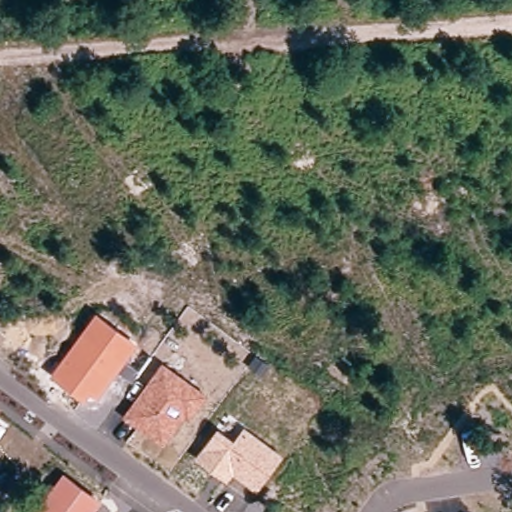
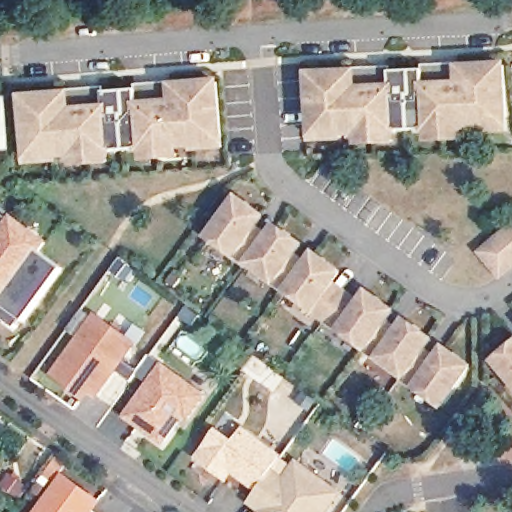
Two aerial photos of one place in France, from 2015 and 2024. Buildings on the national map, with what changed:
new [(359,144),(358,134),(339,135),(339,139),(312,141),(311,130),(308,75),(353,73),(352,69),(376,68),(390,66),(391,72),(423,70),(423,64),(460,63),(460,67),(505,64),(508,119),(508,130),(481,131),(481,127),(461,128),(462,138),(430,140),(429,129),(391,132),(392,142),(359,144)]
new [(70,169),(70,159),(50,160),(51,165),(23,167),(23,156),(17,102),(62,98),(61,94),(85,91),(99,90),(100,95),(132,93),(132,87),(169,84),(170,88),(214,84),(219,139),(220,149),(193,152),(192,147),(173,149),(174,159),(141,162),(140,152),(102,155),(103,165),(70,169)]
new [(4,154),(0,154),(0,107),(4,154)]
new [(472,371),(443,411),(404,382),(405,381),(248,268),(247,269),(207,241),(236,202),(261,219),(255,229),(268,238),(275,229),(300,248),(294,257),(307,267),(314,258),(340,275),(333,285),(362,305),(368,297),(394,314),(387,324),(401,334),(407,324),(433,343),(426,352),(440,362),(447,353),(472,371)]
new [(0,327),(0,230),(2,232),(4,229),(18,239),(35,252),(29,260),(56,279),(21,329),(18,328),(13,337),(0,327)]
new [(512,269),(504,277),(484,254),(512,230),(512,269)]
unchanged [(140,344),(100,402),(91,397),(86,404),(50,376),(96,313),(140,344)]
new [(512,353),(512,380),(499,364),(512,353)]
unchanged [(208,396),(189,422),(185,418),(164,446),(123,418),(162,363),(208,396)]
unchanged [(1,410),(0,411),(0,410),(1,410)]
unchanged [(284,456),(257,492),(232,475),(226,483),(195,459),(218,428),(235,441),(244,427),(284,456)]
new [(284,477),(296,458),(345,494),(331,512),(259,512),(250,505),(257,492),(274,469),(284,477)]
unchanged [(104,503),(96,512),(35,512),(64,473),(104,503)]

